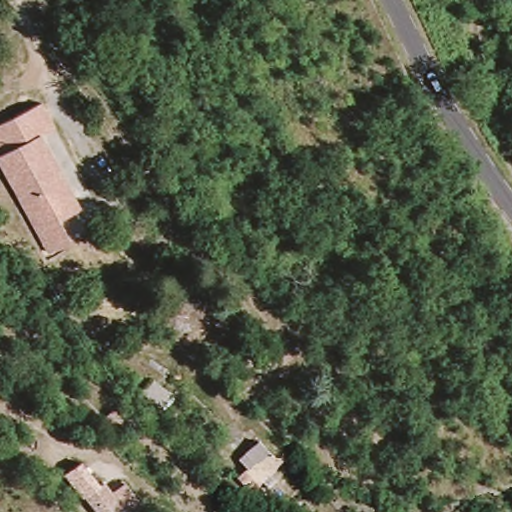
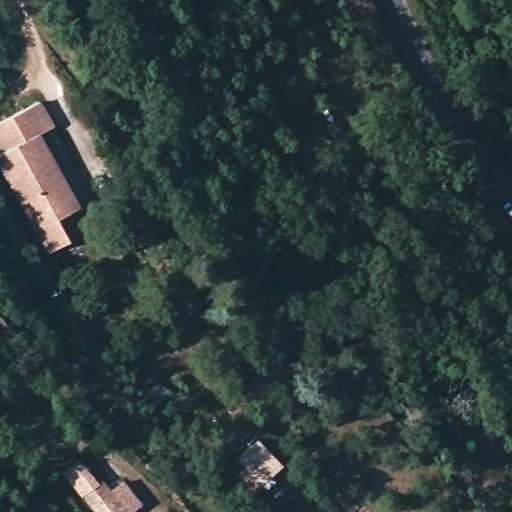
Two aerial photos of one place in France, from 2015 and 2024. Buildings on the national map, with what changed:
unchanged [(43,100),(56,129),(41,138),(79,207),(58,220),(66,240),(48,250),(0,153),(0,122),(43,100)]
unchanged [(149,383),(171,397),(161,412),(139,401),(149,383)]
unchanged [(251,442),(278,464),(258,488),(243,476),(246,471),(234,461),(251,442)]
unchanged [(79,459),(108,493),(125,480),(140,503),(131,512),(96,512),(63,471),(79,459)]

